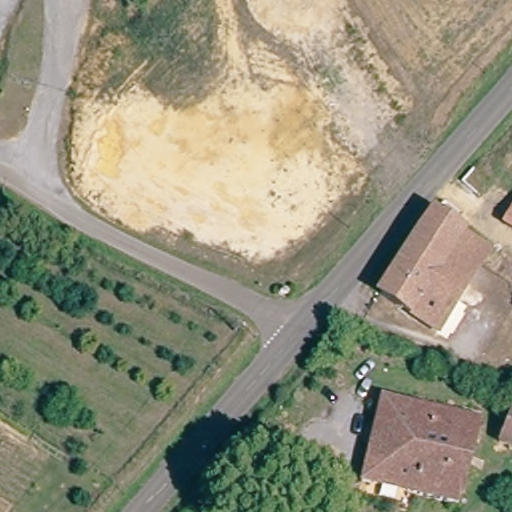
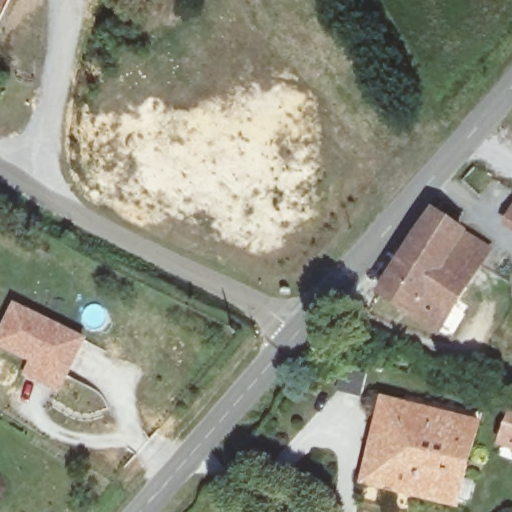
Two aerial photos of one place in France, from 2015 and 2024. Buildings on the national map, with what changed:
unchanged [(467,286),(438,329),(381,291),(435,213),(463,232),(440,268),(467,286)]
unchanged [(481,244),(490,251),(467,286),(440,268),(463,232),(481,244)]
new [(60,393),(21,377),(30,362),(0,349),(0,332),(14,302),(86,337),(60,393)]
unchanged [(362,484),(384,399),(476,422),(457,507),(362,484)]
unchanged [(512,407),(512,445),(498,440),(511,407),(512,407)]

